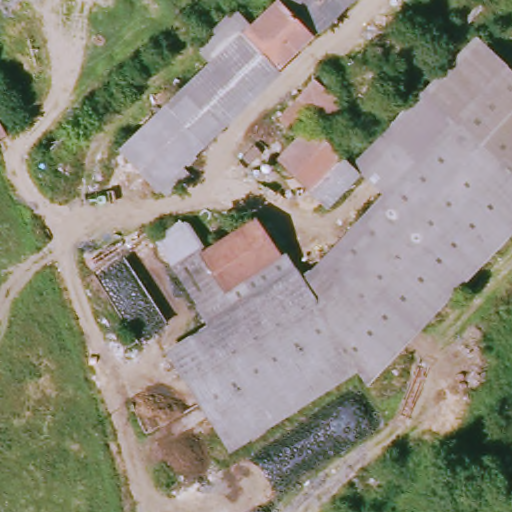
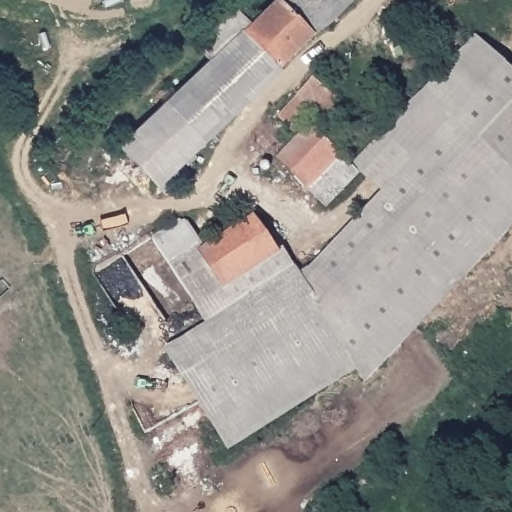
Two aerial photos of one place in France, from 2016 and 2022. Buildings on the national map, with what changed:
unchanged [(302,34),(181,148),(190,157),(179,166),(171,158),(166,164),(177,178),(155,197),(110,147),(202,59),(188,43),(225,8),(240,24),(266,0),(268,0),(302,34)]
unchanged [(326,18),(321,16),(302,34),(268,0),(345,0),(326,18)]
unchanged [(290,282),(324,255),(387,188),(365,167),(481,43),(512,74),(512,227),(361,381),(352,370),(230,451),(162,356),(204,329),(283,275),(290,282)]
unchanged [(275,118),(319,73),(327,82),(323,88),(333,101),(330,104),(340,114),(331,122),(321,113),(314,121),(306,113),(288,132),(275,118)]
unchanged [(272,169),(300,140),(348,183),(319,213),(272,169)]
unchanged [(163,269),(149,248),(175,227),(192,249),(196,256),(247,222),(268,256),(189,310),(163,269)]
unchanged [(283,275),(204,329),(189,310),(268,256),(283,275)]

